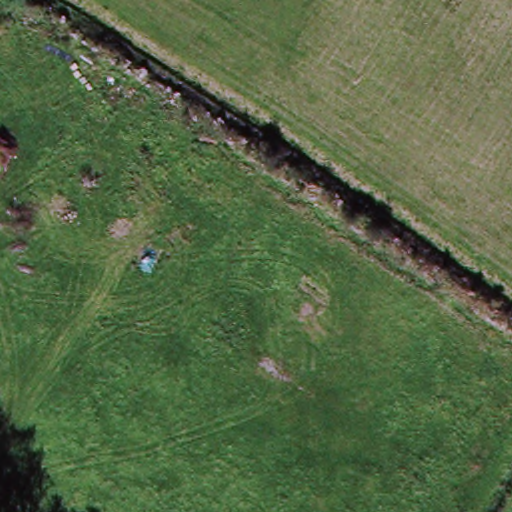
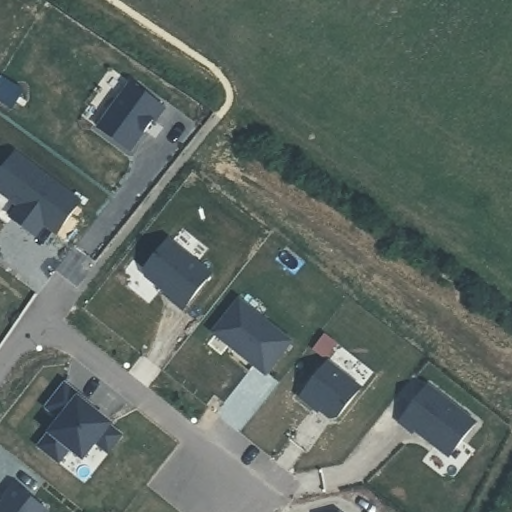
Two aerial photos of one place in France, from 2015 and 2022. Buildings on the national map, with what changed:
new [(130,79),(165,102),(156,116),(154,115),(132,147),(99,125),(130,79)]
new [(81,196),(57,228),(45,219),(37,231),(11,212),(20,200),(0,186),(0,169),(15,148),(81,196)]
new [(166,234),(210,268),(182,303),(169,293),(170,291),(144,270),(143,264),(166,234)]
new [(236,294),(290,336),(265,368),(211,326),(236,294)]
new [(326,356),(360,382),(336,412),(329,413),(314,401),(312,403),(298,392),(326,356)]
new [(426,375),(474,413),(447,447),(413,420),(410,423),(397,412),(426,375)]
new [(61,414),(46,402),(65,379),(80,391),(79,393),(111,418),(110,420),(122,430),(108,447),(96,438),(83,454),(70,444),(59,457),(39,441),(61,414)]
new [(5,492),(15,479),(49,506),(44,512),(0,512),(0,502),(6,494),(5,492)]
new [(346,512),(336,512),(340,507),(346,512)]

